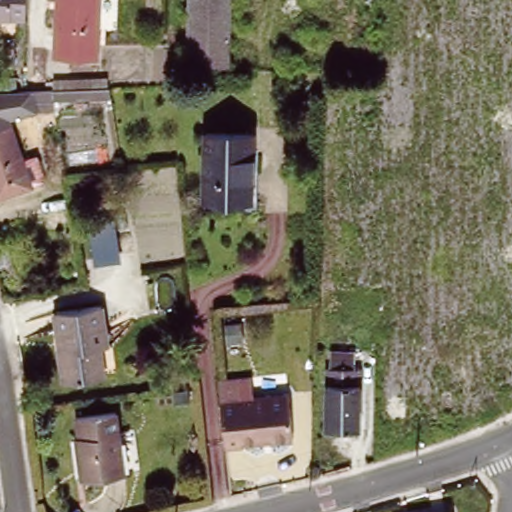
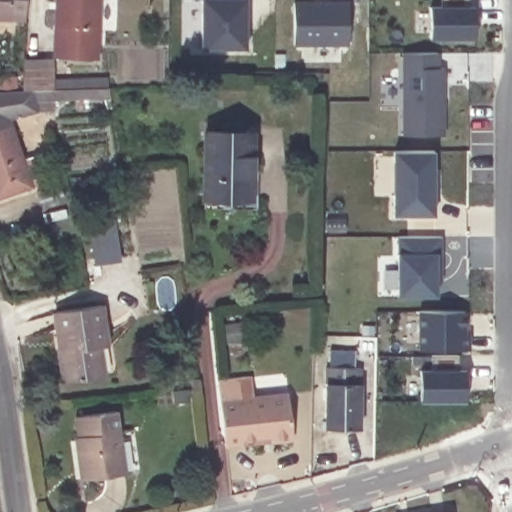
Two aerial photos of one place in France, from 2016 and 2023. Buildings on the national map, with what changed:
unchanged [(0,19),(0,0),(27,0),(26,20),(0,19)]
unchanged [(55,57),(58,0),(99,0),(97,59),(55,57)]
demolished [(188,64),(189,0),(230,0),(229,64),(188,64)]
new [(201,49),(200,0),(248,0),(246,49),(201,49)]
new [(430,5),(445,5),(444,0),(471,0),(472,6),(476,6),(476,39),(430,39),(430,5)]
new [(350,46),(295,45),(294,1),(350,1),(350,46)]
new [(403,135),(401,52),(440,52),(440,68),(446,68),(446,135),(403,135)]
unchanged [(40,184),(31,187),(0,197),(0,92),(23,91),(30,91),(36,110),(9,119),(23,161),(32,159),(40,184)]
unchanged [(247,204),(198,202),(200,136),(248,136),(247,204)]
new [(393,218),(392,151),(434,151),(435,215),(393,218)]
new [(437,283),(437,297),(397,296),(397,288),(384,289),(385,269),(396,269),(396,252),(400,253),(397,235),(443,235),(443,282),(437,283)]
unchanged [(97,299),(102,341),(95,342),(99,371),(59,376),(53,343),(55,343),(53,327),(50,307),(97,299)]
new [(418,350),(417,310),(465,310),(465,333),(471,334),(471,349),(418,350)]
unchanged [(351,351),(351,367),(356,367),(355,429),(321,428),(322,366),(325,366),(325,350),(351,351)]
new [(420,402),(420,369),(432,369),(431,356),(461,356),(461,369),(467,369),(467,402),(420,402)]
unchanged [(221,396),(287,389),(293,434),(271,437),(270,431),(243,434),(244,440),(226,442),(221,396)]
unchanged [(125,473),(85,478),(76,417),(116,411),(125,473)]

